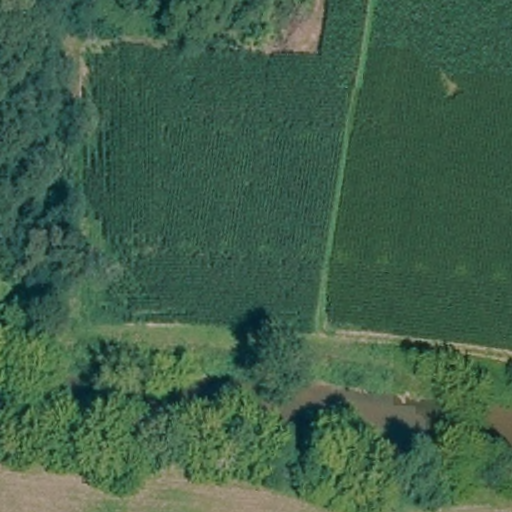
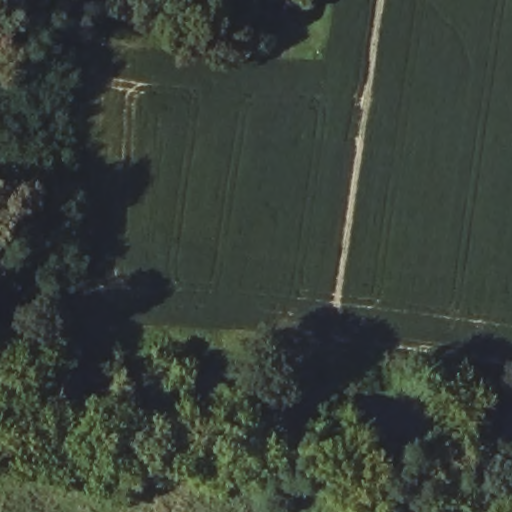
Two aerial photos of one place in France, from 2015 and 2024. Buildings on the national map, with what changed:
unchanged [(220,0),(265,0),(261,33),(233,30),(232,37),(215,35),(220,0)]
unchanged [(305,4),(277,0),(306,0),(305,4)]

